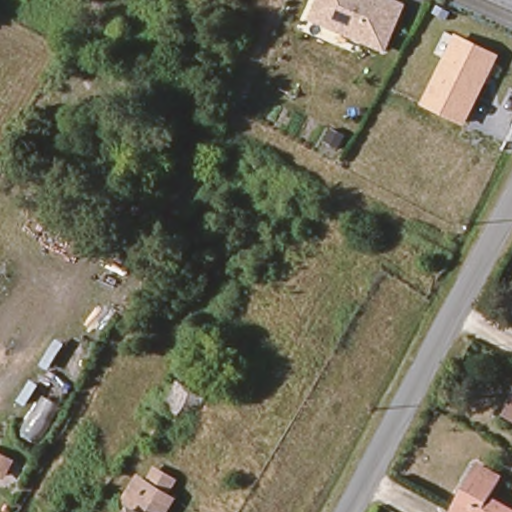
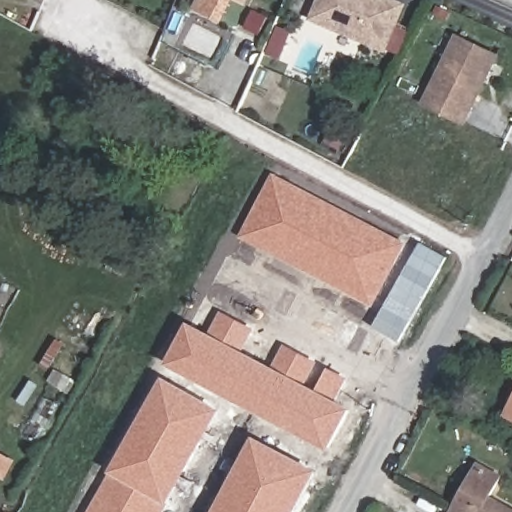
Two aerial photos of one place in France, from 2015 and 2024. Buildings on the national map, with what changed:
new [(237,0),(249,0),(247,5),(237,0)]
unchanged [(397,0),(407,4),(387,54),(309,22),(318,0),(397,0)]
unchanged [(457,35),(500,55),(466,128),(422,106),(457,35)]
new [(239,239),(272,174),(406,243),(372,308),(239,239)]
new [(190,323),(210,334),(220,311),(255,330),(244,352),(273,367),(284,345),(318,363),(306,385),(315,390),(329,368),(349,379),(337,401),(353,410),(330,452),(167,365),(190,323)]
new [(163,378),(222,410),(172,502),(163,497),(140,484),(122,509),(128,512),(89,512),(163,378)]
demolished [(180,381),(203,394),(179,431),(158,419),(180,381)]
unchanged [(512,406),(512,421),(505,418),(512,406)]
new [(320,473),(299,512),(214,512),(255,437),(320,473)]
unchanged [(4,482),(0,479),(0,454),(14,461),(4,482)]
unchanged [(500,484),(489,502),(507,512),(452,512),(476,470),(500,484)]
unchanged [(122,509),(140,484),(175,504),(170,512),(128,512),(122,509)]

